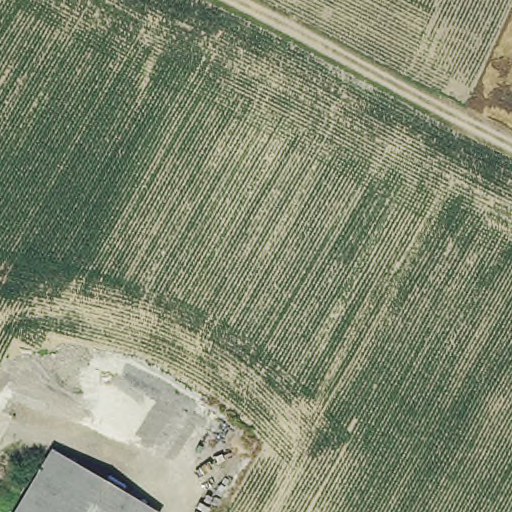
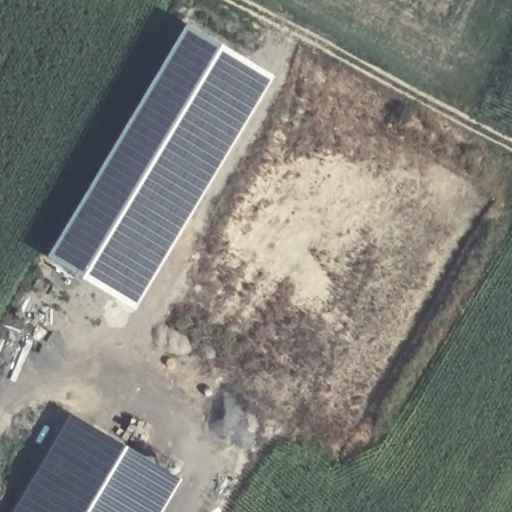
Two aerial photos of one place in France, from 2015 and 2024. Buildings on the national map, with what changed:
new [(185,22),(274,75),(134,310),(44,256),(185,22)]
new [(71,414),(169,469),(175,460),(184,464),(178,476),(182,477),(162,512),(140,512),(58,464),(48,458),(46,458),(71,414)]
unchanged [(16,512),(48,458),(140,512),(16,512)]

